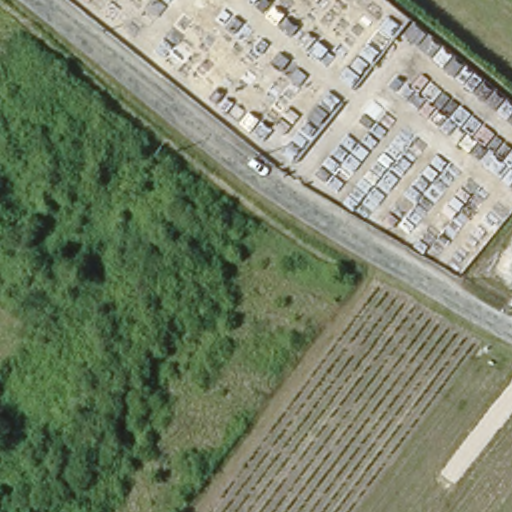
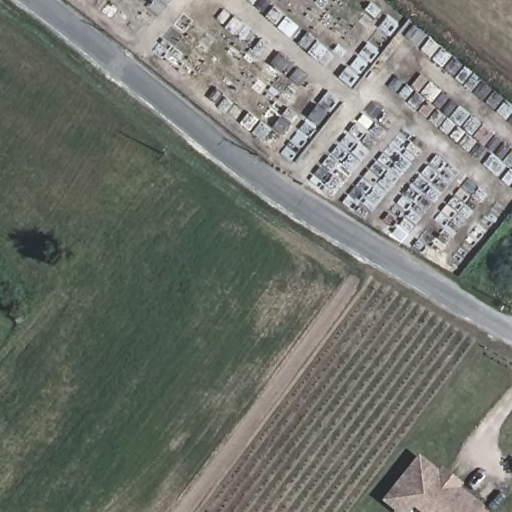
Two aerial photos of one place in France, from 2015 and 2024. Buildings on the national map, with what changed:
new [(413,509),(411,512),(395,512),(382,501),(420,455),(440,471),(443,467),(463,485),(462,488),(486,508),(483,510),(486,512),(417,512),(413,509)]

